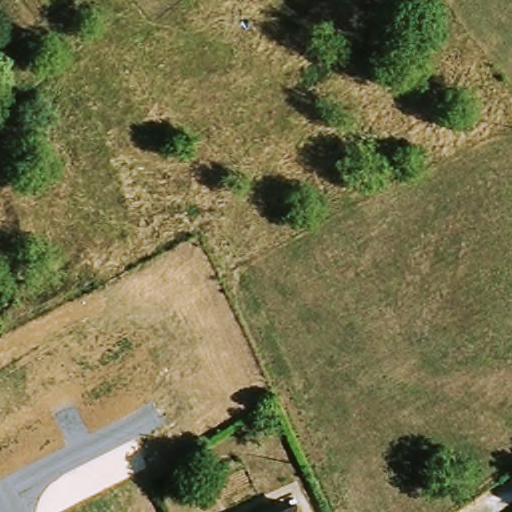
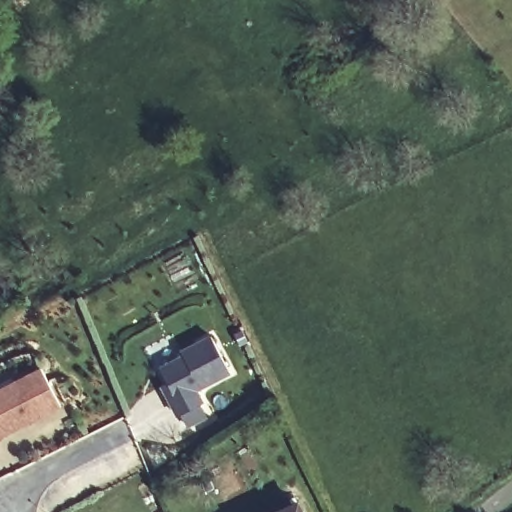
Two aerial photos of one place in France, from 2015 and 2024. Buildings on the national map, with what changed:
new [(229,374),(198,391),(204,402),(176,416),(160,386),(167,383),(159,367),(185,354),(182,350),(209,335),(229,374)]
new [(60,406),(0,437),(0,387),(40,367),(60,406)]
unchanged [(306,512),(289,512),(302,505),(306,512)]

